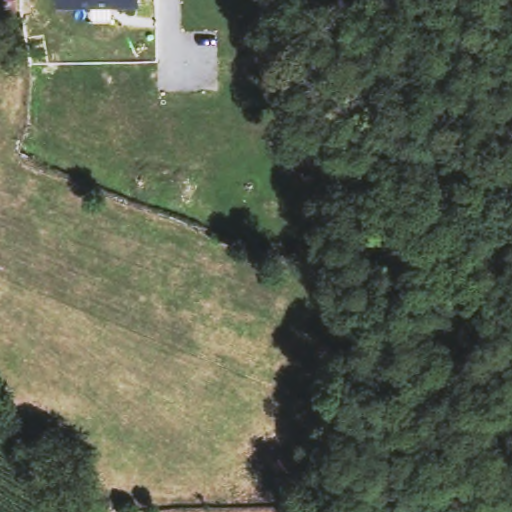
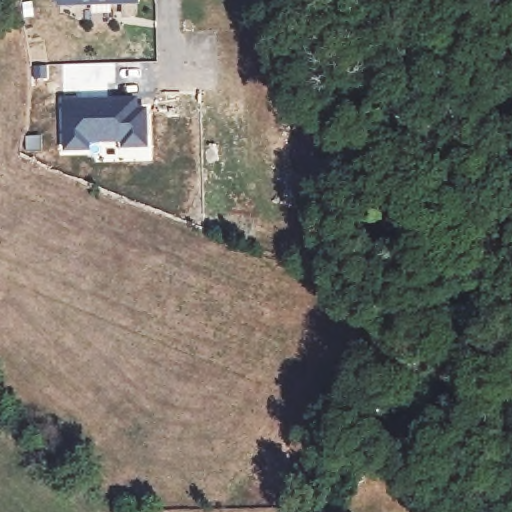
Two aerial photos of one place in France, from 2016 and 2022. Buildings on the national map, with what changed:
unchanged [(60,5),(60,0),(138,0),(138,7),(60,5)]
new [(139,96),(139,107),(148,107),(148,144),(124,144),(124,138),(90,138),(90,145),(66,145),(65,96),(139,96)]

